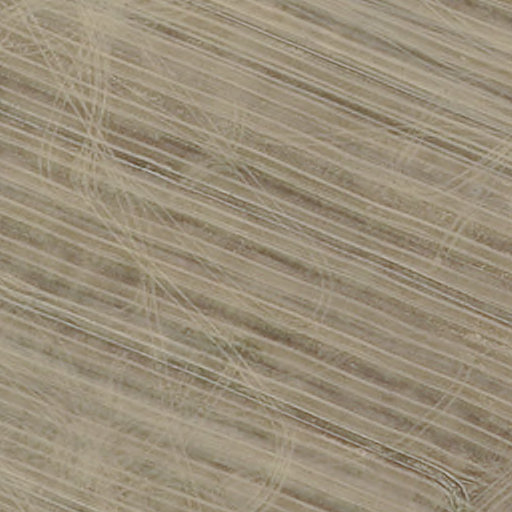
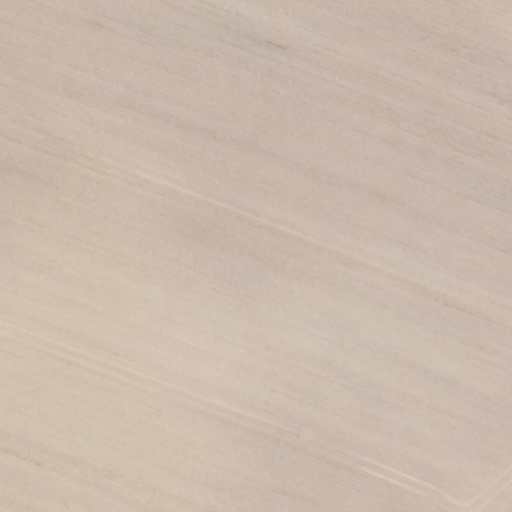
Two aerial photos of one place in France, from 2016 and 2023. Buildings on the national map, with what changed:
[]

